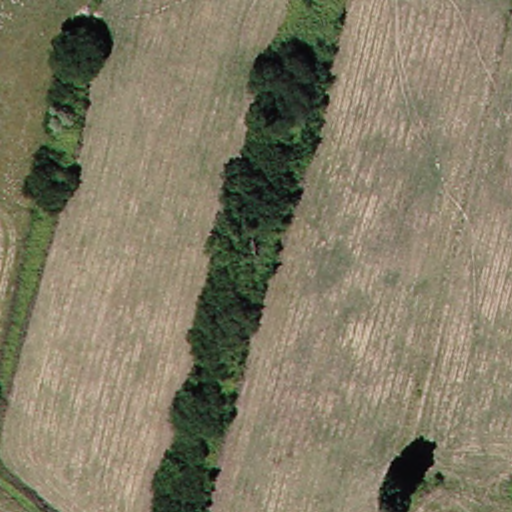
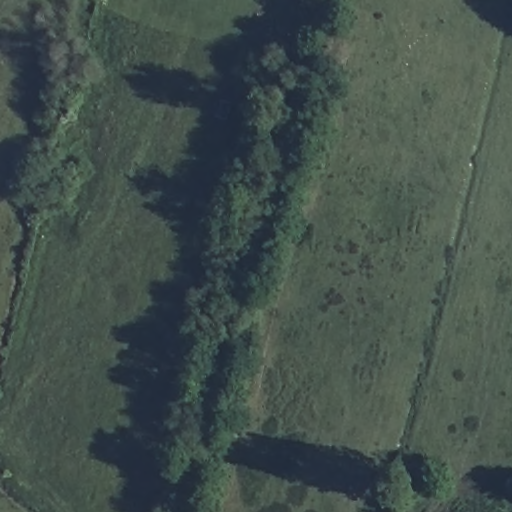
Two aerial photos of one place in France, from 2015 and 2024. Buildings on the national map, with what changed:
[]

